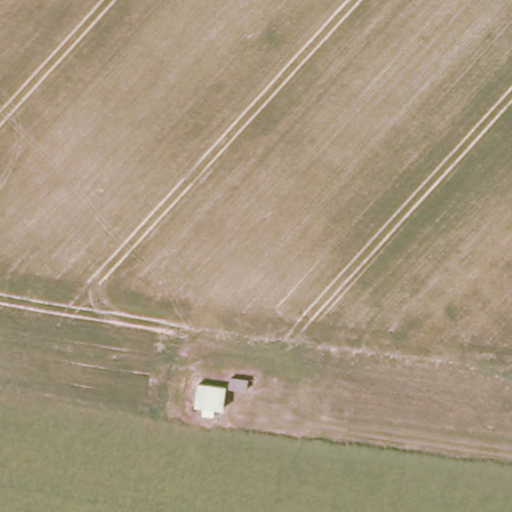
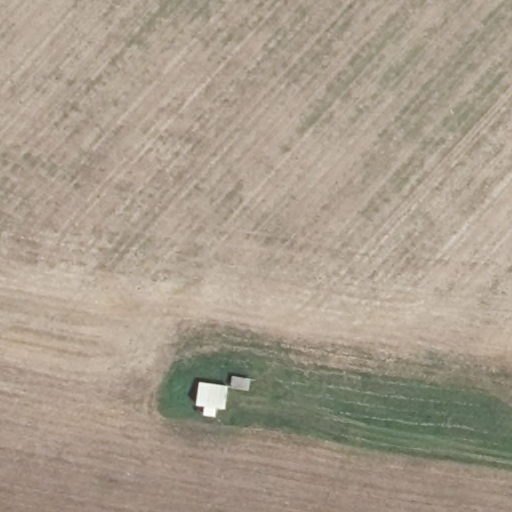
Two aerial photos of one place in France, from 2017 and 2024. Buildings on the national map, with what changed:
unchanged [(226,381),(224,407),(213,406),(215,420),(198,415),(198,405),(190,402),(195,378),(226,381)]

